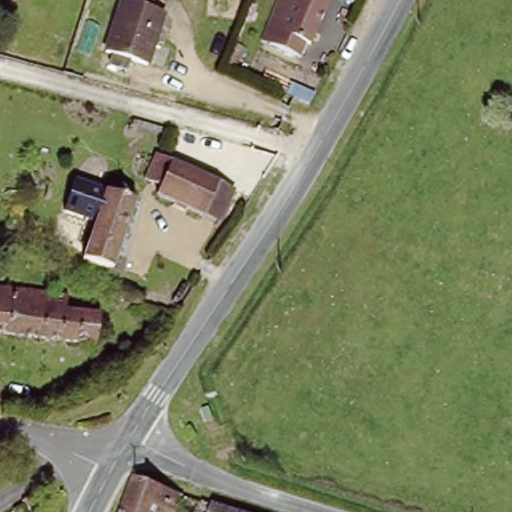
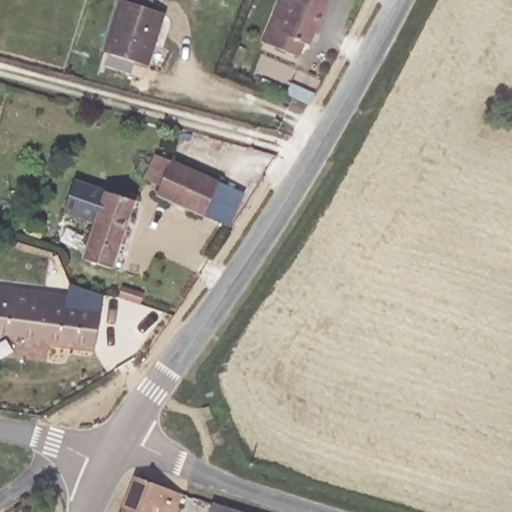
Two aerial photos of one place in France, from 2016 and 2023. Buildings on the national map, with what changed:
unchanged [(170,15),(151,66),(110,52),(129,0),(159,0),(155,9),(170,15)]
unchanged [(312,43),(308,52),(287,43),(292,34),(277,28),(289,0),(335,0),(317,45),(312,43)]
unchanged [(234,187),(220,218),(203,211),(202,212),(155,190),(158,182),(142,174),(154,149),(217,177),(217,180),(234,187)]
unchanged [(117,268),(87,259),(100,220),(90,217),(100,190),(123,197),(125,191),(127,190),(128,190),(130,189),(131,189),(132,189),(134,190),(135,190),(137,191),(137,192),(138,194),(137,201),(139,202),(117,268)]
unchanged [(70,311),(103,315),(100,343),(0,333),(0,287),(72,297),(70,311)]
unchanged [(140,304),(118,297),(122,287),(143,293),(140,304)]
unchanged [(180,490),(172,512),(120,512),(134,473),(180,490)]
unchanged [(255,512),(205,512),(209,499),(255,512)]

